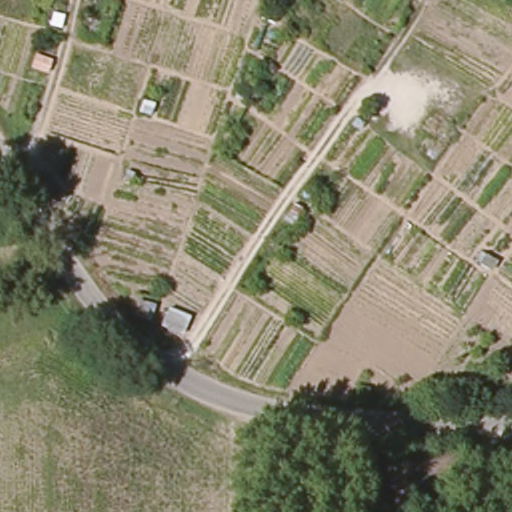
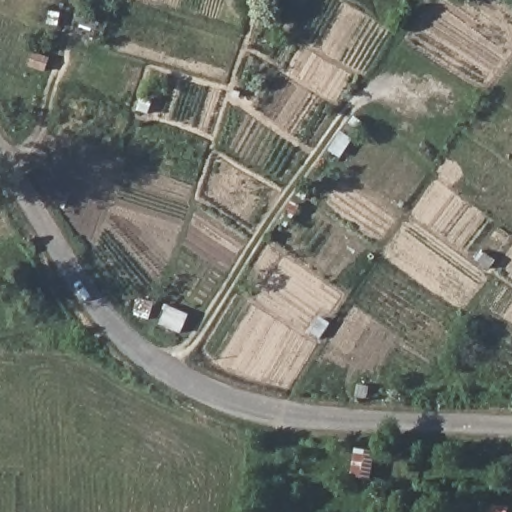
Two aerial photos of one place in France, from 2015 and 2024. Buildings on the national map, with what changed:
unchanged [(382,462),(376,489),(358,486),(363,458),(382,462)]
unchanged [(503,508),(503,512),(475,512),(476,505),(485,506),(503,508)]

